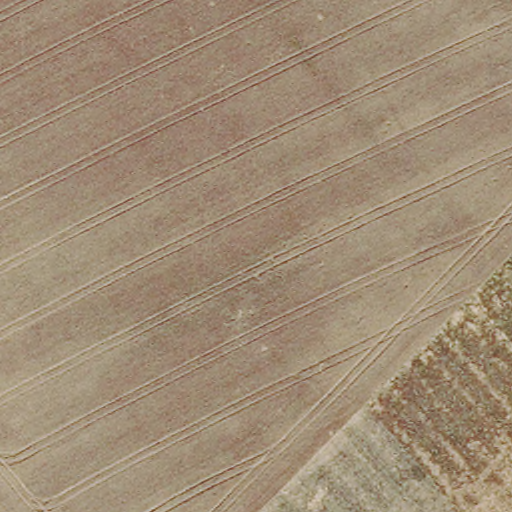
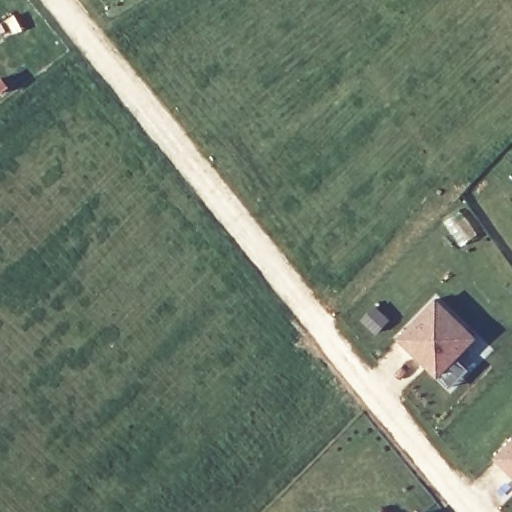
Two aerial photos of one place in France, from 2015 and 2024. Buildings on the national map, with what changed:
new [(398,335),(435,297),(473,333),(436,372),(398,335)]
new [(497,457),(512,442),(512,471),(497,457)]

